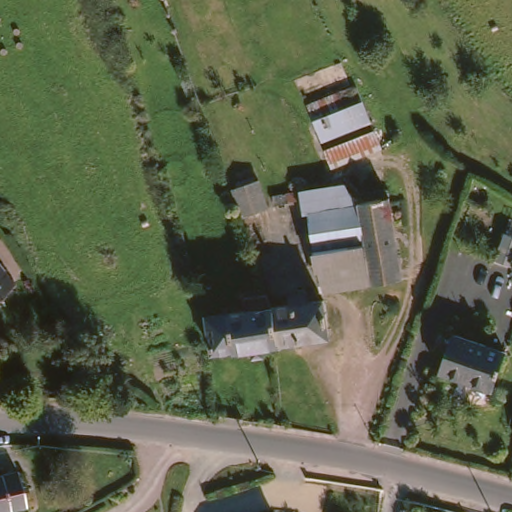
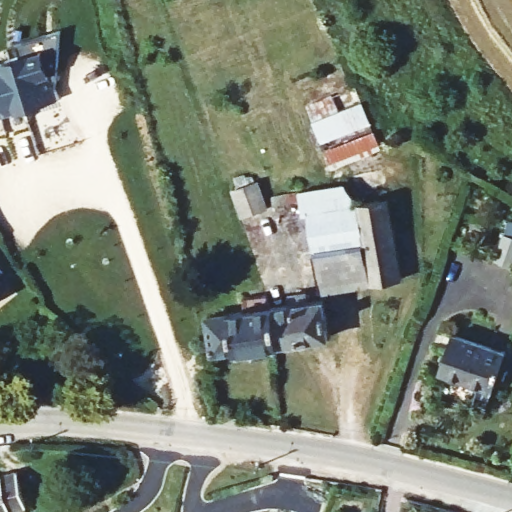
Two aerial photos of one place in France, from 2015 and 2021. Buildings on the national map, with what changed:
new [(56,89),(60,98),(54,100),(0,116),(0,62),(22,55),(18,44),(60,32),(56,89)]
unchanged [(315,123),(362,104),(381,148),(332,167),(315,123)]
unchanged [(267,217),(239,223),(231,193),(259,186),(267,217)]
unchanged [(356,206),(390,202),(396,248),(316,259),(309,221),(302,222),(299,206),(272,210),(270,201),(280,199),(342,189),(356,206)]
new [(505,234),(512,236),(512,265),(497,261),(505,234)]
unchanged [(321,296),(316,259),(396,248),(402,285),(321,296)]
unchanged [(0,306),(0,275),(16,295),(0,306)]
unchanged [(271,310),(287,308),(287,300),(305,298),(305,305),(320,304),(323,341),(276,347),(271,310)]
unchanged [(209,356),(207,345),(199,346),(192,310),(204,309),(204,305),(217,304),(219,318),(237,316),(236,307),(242,306),(244,314),(271,310),(276,347),(271,348),(209,356)]
unchanged [(494,387),(440,371),(451,334),(506,351),(494,387)]
unchanged [(7,512),(0,512),(0,476),(15,473),(24,508),(7,512)]

